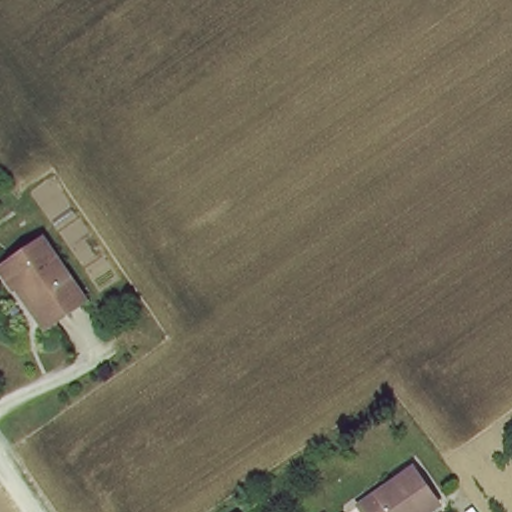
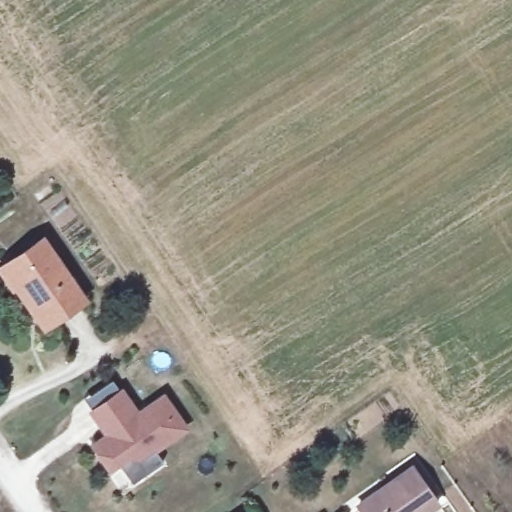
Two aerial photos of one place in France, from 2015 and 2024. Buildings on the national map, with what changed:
unchanged [(42,238),(82,299),(45,325),(17,282),(9,286),(0,273),(0,268),(42,238)]
new [(116,462),(100,438),(114,428),(109,422),(97,405),(127,384),(137,398),(143,407),(169,388),(191,421),(161,442),(170,455),(154,465),(139,476),(124,456),(116,462)]
unchanged [(414,466),(439,501),(422,512),(366,512),(360,502),(414,466)]

